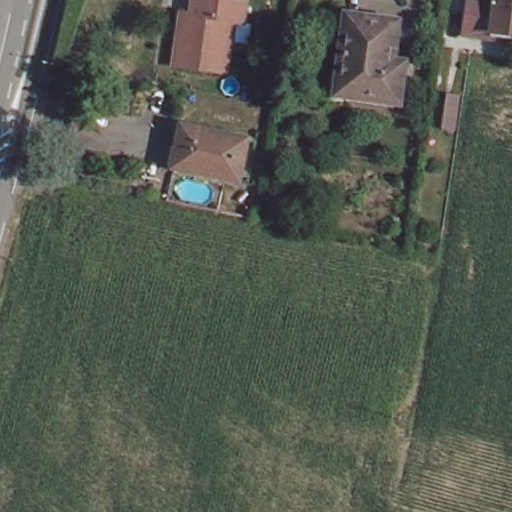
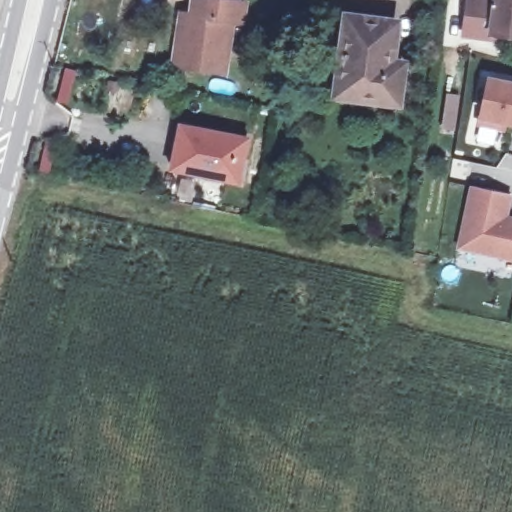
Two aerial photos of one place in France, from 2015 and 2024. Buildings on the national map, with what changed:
unchanged [(183,9),(193,10),(194,0),(246,0),(244,18),(230,16),(222,69),(191,64),(175,62),(183,9)]
unchanged [(470,17),(471,0),(512,0),(512,31),(498,28),(496,38),(474,34),(472,33),(467,33),(470,17)]
unchanged [(347,72),(355,13),(405,20),(400,60),(410,62),(410,71),(405,99),(363,93),(344,91),(347,72)]
new [(505,124),(505,130),(478,124),(480,118),(488,74),(512,79),(512,125),(505,124)]
unchanged [(252,141),(241,182),(177,169),(186,128),(252,141)]
new [(507,215),(512,216),(512,260),(458,249),(470,185),(512,195),(512,198),(507,215)]

